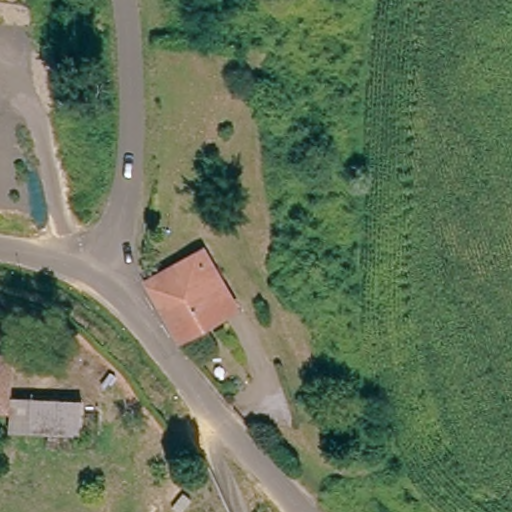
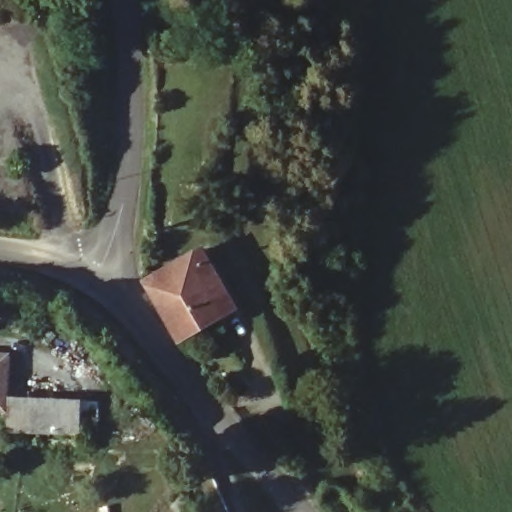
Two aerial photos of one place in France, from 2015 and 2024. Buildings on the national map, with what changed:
unchanged [(154,297),(170,288),(165,275),(197,257),(205,271),(211,267),(235,311),(179,342),(154,297)]
unchanged [(8,359),(7,410),(0,409),(0,358),(8,359)]
unchanged [(19,402),(82,405),(81,438),(17,435),(19,402)]
unchanged [(196,484),(204,492),(197,499),(189,491),(196,484)]

